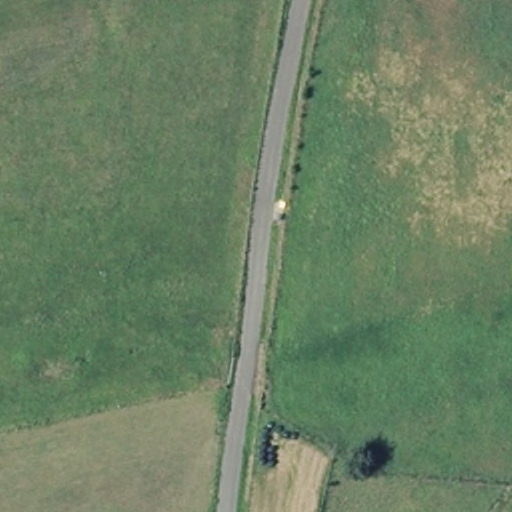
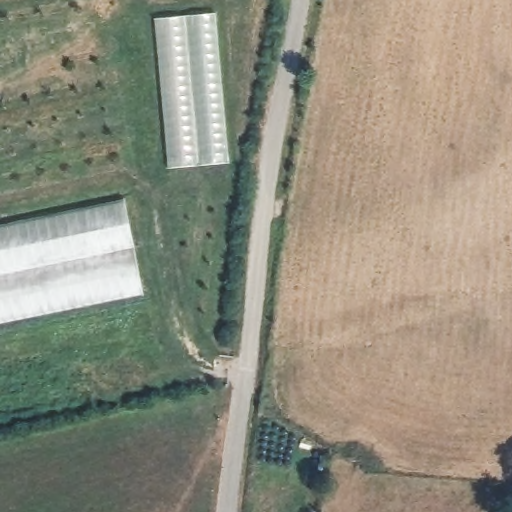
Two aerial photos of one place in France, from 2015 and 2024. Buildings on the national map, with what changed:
new [(215,11),(231,162),(167,168),(158,89),(153,18),(215,11)]
new [(143,293),(0,324),(0,225),(125,199),(143,293)]

